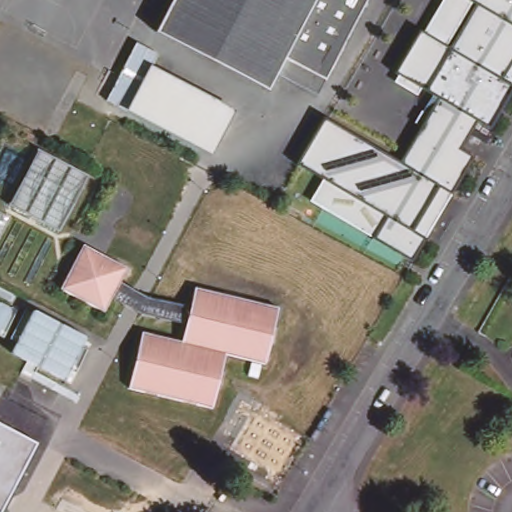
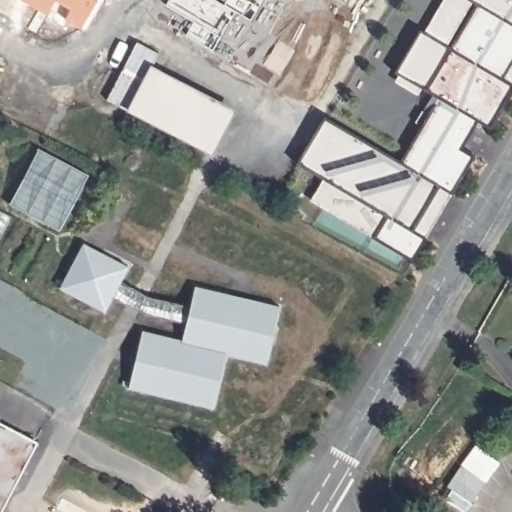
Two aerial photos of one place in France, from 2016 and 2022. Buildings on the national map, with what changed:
demolished [(277,77),(269,91),(158,32),(174,0),(365,0),(313,96),(277,77)]
unchanged [(481,119),(462,145),(476,154),(414,257),(308,198),(323,176),(299,163),(324,119),(405,160),(439,98),(395,70),(437,0),(512,0),(512,88),(490,126),(481,119)]
unchanged [(213,151),(131,108),(129,112),(107,101),(138,43),(159,54),(150,71),(233,114),(213,151)]
unchanged [(92,176),(61,232),(12,208),(40,148),(92,176)]
unchanged [(129,266),(107,311),(62,289),(85,244),(129,266)]
unchanged [(182,340),(195,287),(279,308),(266,364),(227,355),(214,408),(129,387),(142,331),(182,340)]
unchanged [(2,512),(0,512),(0,427),(36,446),(2,512)]

